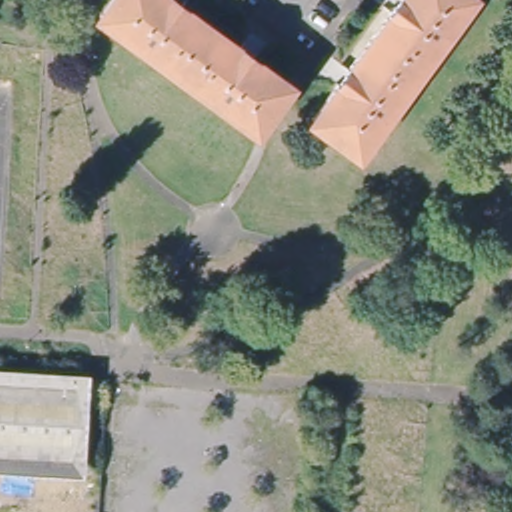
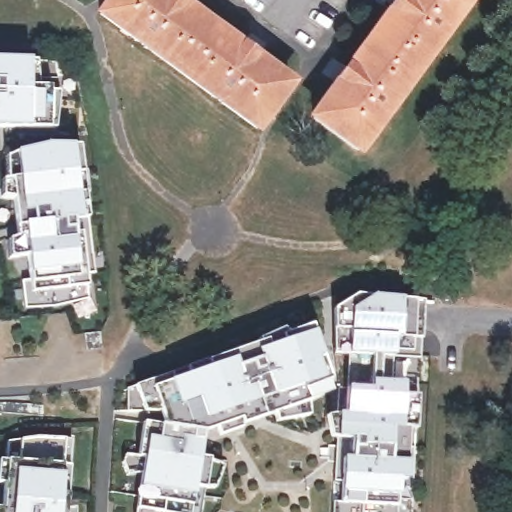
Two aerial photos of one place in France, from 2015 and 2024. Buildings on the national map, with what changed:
unchanged [(257,123),(102,12),(110,0),(173,0),(287,82),(257,123)]
unchanged [(315,117),(400,0),(461,0),(353,147),(315,117)]
new [(37,59),(39,85),(51,88),(59,92),(54,129),(47,128),(27,128),(0,128),(0,59),(32,59),(37,59)]
new [(60,306),(25,309),(22,278),(29,276),(27,258),(11,259),(9,240),(20,237),(15,198),(4,199),(3,180),(8,180),(5,157),(16,151),(49,145),(72,145),(79,145),(88,218),(94,261),(85,263),(87,284),(89,298),(60,306)]
new [(332,441),(327,415),(345,414),(346,387),(350,387),(351,353),(334,355),(332,326),(332,308),(357,294),(372,296),(401,297),(415,300),(423,300),(420,353),(392,350),(393,356),(385,355),(383,380),(405,380),(405,393),(418,395),(417,427),(407,427),(405,461),(403,480),(397,481),(397,494),(396,504),(395,512),(333,512),(339,441),(332,441)]
new [(203,512),(137,512),(137,508),(140,493),(144,456),(139,455),(143,421),(165,425),(160,407),(146,410),(135,385),(170,374),(173,380),(193,374),(190,365),(260,341),(258,338),(283,327),(288,331),(310,325),(328,376),(330,391),(308,401),(310,415),(277,423),(276,412),(242,425),(221,436),(220,425),(203,432),(202,453),(226,463),(215,488),(209,488),(203,512)]
new [(100,332),(101,348),(88,350),(86,347),(84,334),(100,332)]
demolished [(75,465),(0,460),(0,374),(79,379),(75,465)]
new [(43,404),(44,413),(0,409),(0,399),(28,401),(43,404)]
new [(5,483),(0,483),(0,460),(6,460),(7,441),(20,441),(34,439),(66,439),(72,439),(69,469),(67,496),(67,509),(72,509),(73,512),(0,512),(0,510),(2,511),(5,483)]

